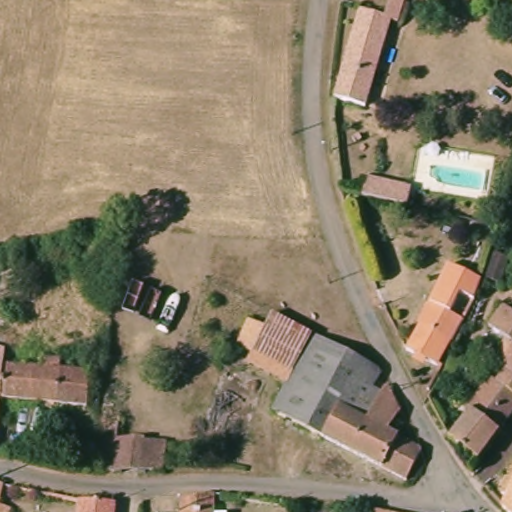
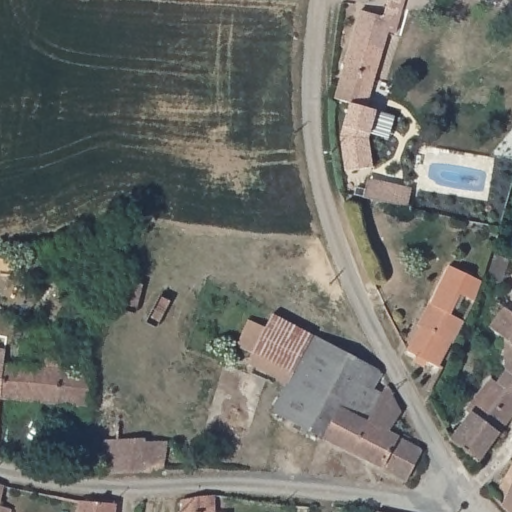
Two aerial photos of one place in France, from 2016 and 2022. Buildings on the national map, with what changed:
unchanged [(387,0),(402,0),(396,22),(388,21),(364,108),(333,100),(357,12),(381,18),(387,0)]
new [(364,108),(375,111),(368,137),(372,167),(344,170),(339,136),(343,126),(350,104),(364,108)]
unchanged [(396,194),(393,207),(359,200),(362,186),(396,194)]
unchanged [(437,301),(433,310),(463,321),(442,366),(407,352),(428,297),(437,301)]
unchanged [(500,370),(499,337),(488,330),(501,308),(512,316),(512,420),(481,463),(451,441),(468,416),(462,412),(487,377),(492,381),(500,370)]
unchanged [(388,430),(404,437),(401,446),(413,452),(400,482),(266,415),(280,385),(250,362),(251,352),(236,351),(239,320),(273,325),(301,337),(365,367),(371,377),(357,423),(365,428),(378,388),(394,416),(388,430)]
unchanged [(9,352),(4,400),(0,400),(0,350),(9,352)]
unchanged [(21,353),(20,365),(88,373),(83,408),(4,400),(9,352),(21,353)]
unchanged [(120,390),(117,438),(164,442),(163,473),(97,476),(105,389),(120,390)]
unchanged [(512,479),(512,512),(499,512),(498,511),(512,479)]
unchanged [(0,495),(0,488),(1,488),(0,495)]
unchanged [(178,502),(214,500),(214,512),(178,512),(178,502)]
unchanged [(76,502),(111,508),(110,512),(74,512),(76,502)]
unchanged [(10,511),(10,512),(0,512),(0,508),(10,511)]

